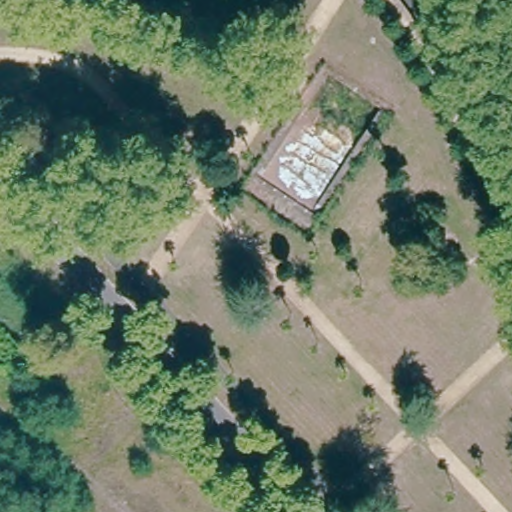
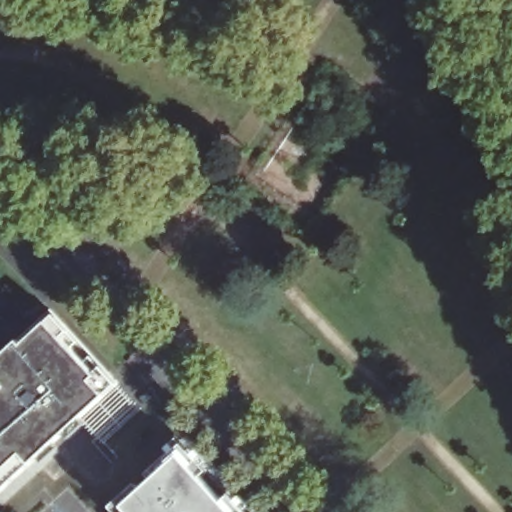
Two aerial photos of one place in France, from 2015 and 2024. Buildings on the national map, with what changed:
new [(92,380),(105,394),(31,462),(0,491),(0,359),(19,341),(23,345),(47,323),(97,375),(92,380)]
new [(233,512),(133,512),(127,506),(182,457),(233,512)]

